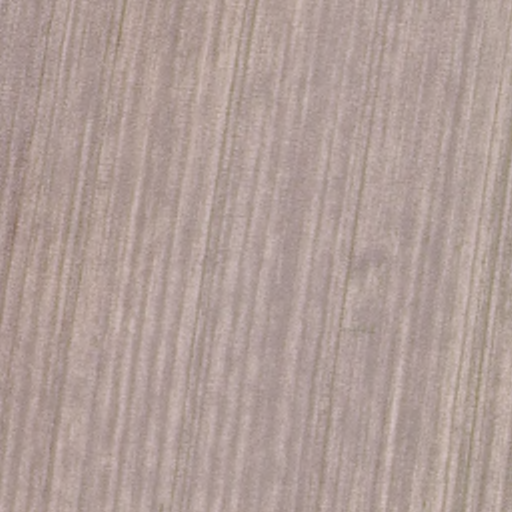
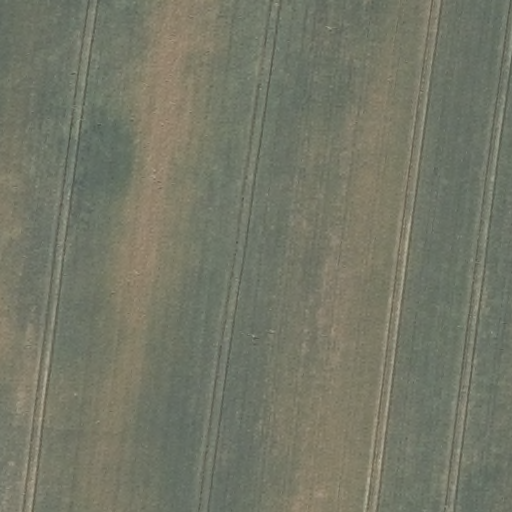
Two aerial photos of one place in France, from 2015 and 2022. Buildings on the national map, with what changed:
[]

